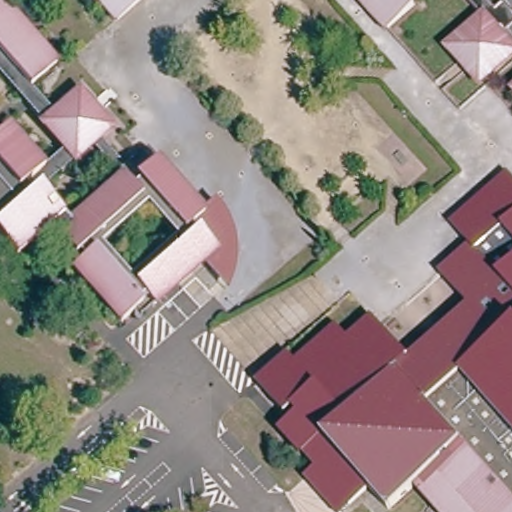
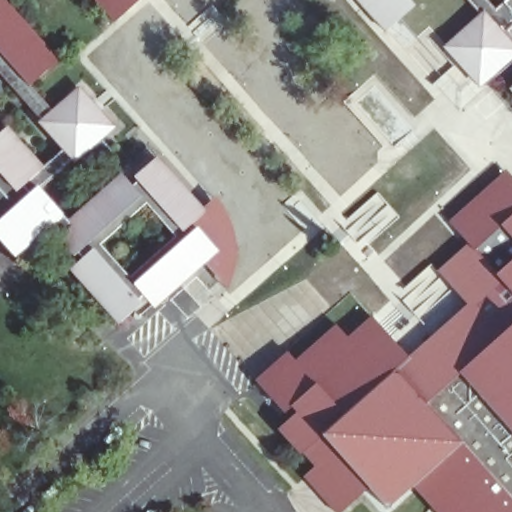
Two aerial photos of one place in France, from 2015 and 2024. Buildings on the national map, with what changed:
unchanged [(29,85),(50,110),(83,84),(119,125),(103,140),(137,176),(159,157),(206,210),(184,228),(189,235),(197,229),(218,251),(155,303),(145,294),(139,300),(141,306),(120,324),(69,268),(81,257),(49,223),(14,255),(0,239),(0,134),(8,127),(45,166),(64,150),(38,121),(40,116),(0,71),(0,0),(4,0),(59,61),(29,85)]
unchanged [(100,0),(136,0),(116,17),(100,0)]
unchanged [(383,27),(359,0),(412,0),(414,2),(383,27)]
unchanged [(501,0),(512,0),(512,9),(509,11),(512,14),(512,54),(477,85),(442,42),(479,10),(470,0),(484,0),(492,9),(501,0)]
unchanged [(511,86),(512,85),(512,88),(511,86)]
unchanged [(502,190),(512,184),(512,512),(430,512),(409,489),(386,512),(369,512),(357,501),(339,512),(334,512),(303,477),(313,470),(277,426),(286,419),(256,380),(288,350),(293,358),(358,302),(405,355),(464,305),(437,271),(465,245),(447,220),(493,182),(502,190)]

